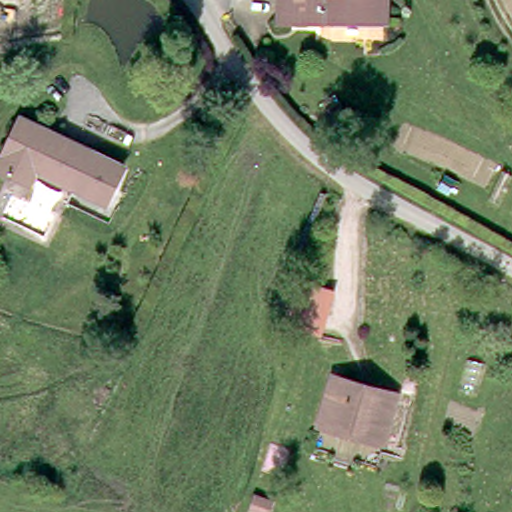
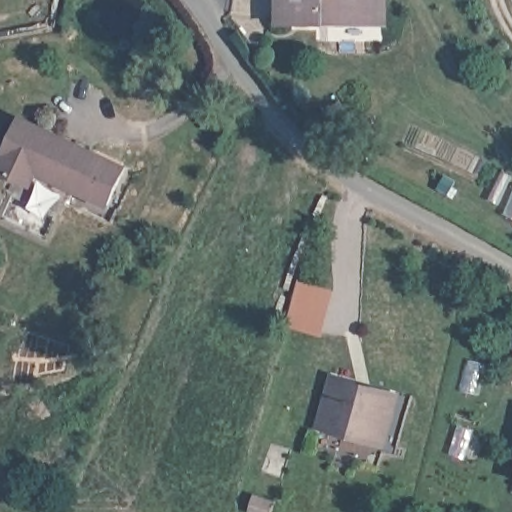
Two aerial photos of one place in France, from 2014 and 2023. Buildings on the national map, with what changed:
unchanged [(278,16),(279,0),(327,0),(325,18),(278,16)]
unchanged [(327,0),(390,0),(388,21),(336,19),(325,18),(327,0)]
unchanged [(92,150),(75,186),(41,171),(35,186),(0,170),(24,117),(92,150)]
unchanged [(128,166),(110,207),(70,192),(75,186),(87,160),(92,150),(128,166)]
new [(335,290),(321,336),(285,326),(298,280),(335,290)]
unchanged [(378,437),(323,419),(338,372),(394,389),(378,437)]

